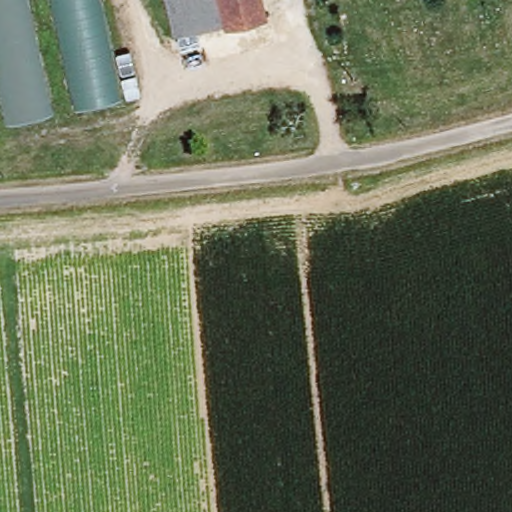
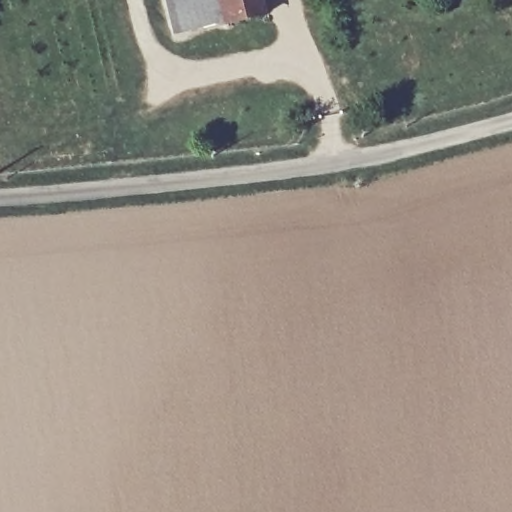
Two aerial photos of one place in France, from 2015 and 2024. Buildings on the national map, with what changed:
demolished [(52,112),(4,122),(0,102),(0,0),(29,0),(52,112)]
demolished [(122,97),(75,107),(54,0),(102,0),(122,97)]
unchanged [(177,40),(169,0),(201,0),(207,32),(177,40)]
unchanged [(201,0),(224,0),(229,27),(207,32),(201,0)]
unchanged [(224,0),(265,0),(269,18),(229,27),(224,0)]

